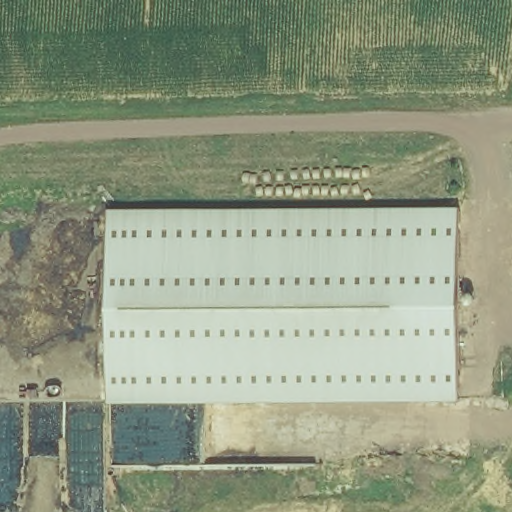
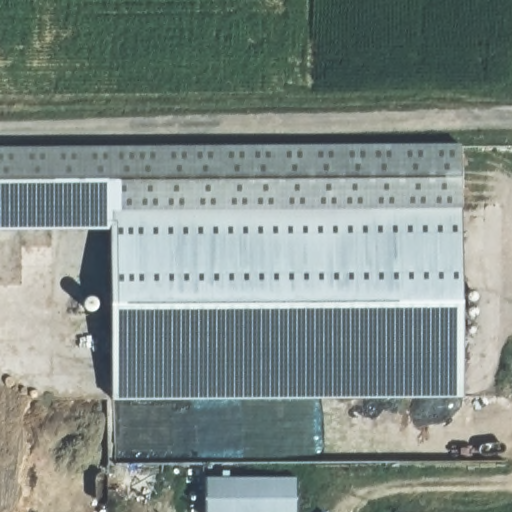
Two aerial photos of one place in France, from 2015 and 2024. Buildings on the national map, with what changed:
new [(116,213),(0,214),(0,144),(459,145),(468,210),(116,213)]
unchanged [(468,210),(470,400),(118,403),(116,213),(468,210)]
new [(297,512),(240,512),(240,478),(296,477),(297,512)]
new [(240,478),(240,512),(205,512),(205,478),(240,478)]

